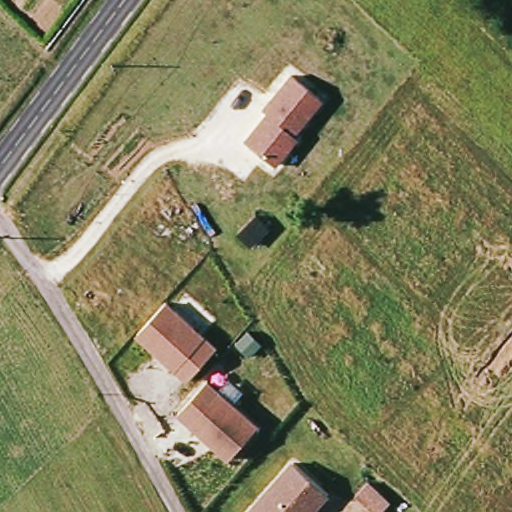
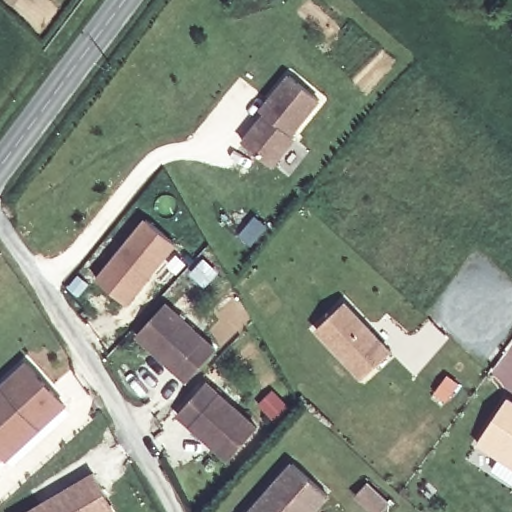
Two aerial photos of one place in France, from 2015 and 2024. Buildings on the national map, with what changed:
unchanged [(241,139),(264,113),(260,109),(289,74),(321,100),(294,136),(296,139),(274,166),(241,139)]
new [(178,245),(128,304),(96,278),(146,219),(178,245)]
demolished [(0,246),(0,238),(3,242),(0,246)]
unchanged [(137,335),(169,301),(218,347),(188,382),(137,335)]
new [(344,302),(392,352),(364,379),(316,329),(344,302)]
new [(10,459),(0,449),(0,387),(28,362),(69,407),(10,459)]
unchanged [(178,417),(208,380),(259,424),(228,461),(178,417)]
new [(507,399),(512,402),(512,466),(478,444),(507,399)]
unchanged [(293,462),(330,496),(315,512),(245,512),(293,462)]
new [(91,473),(117,512),(24,512),(91,473)]
new [(366,484),(389,504),(382,512),(371,512),(354,496),(366,484)]

